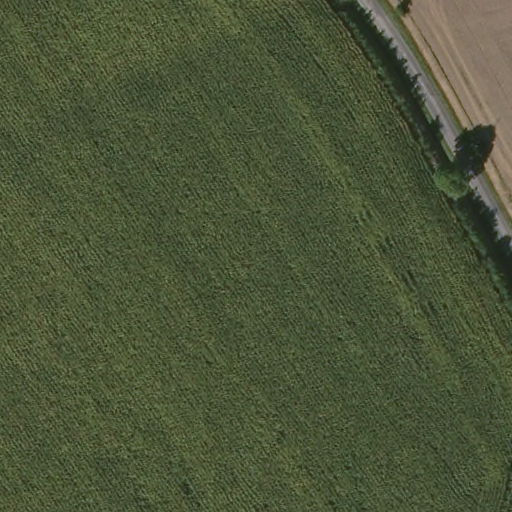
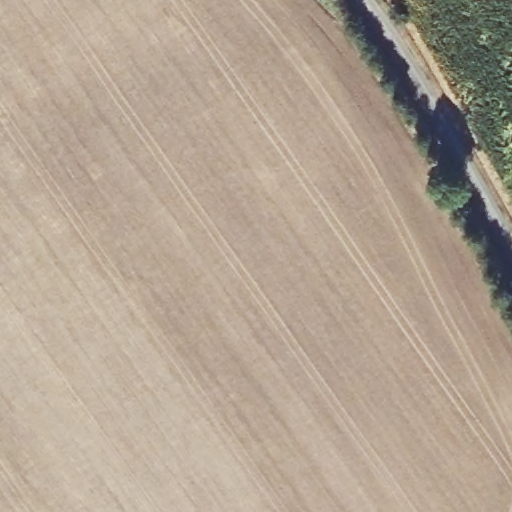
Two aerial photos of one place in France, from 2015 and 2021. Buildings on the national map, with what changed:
[]

